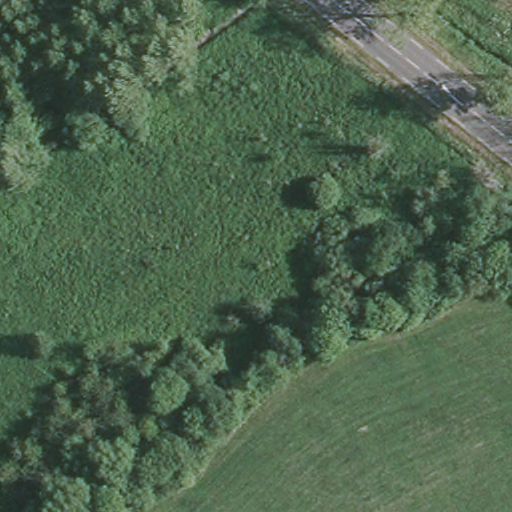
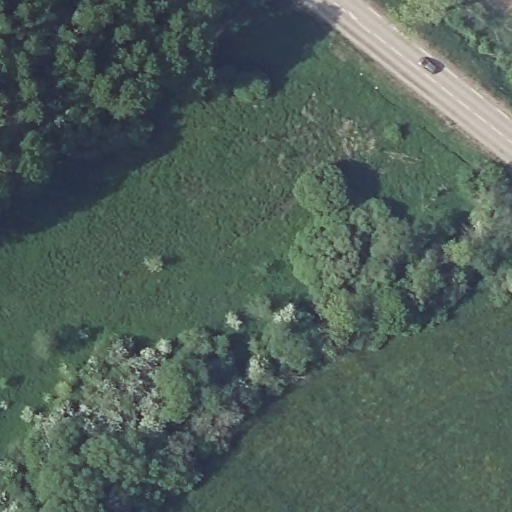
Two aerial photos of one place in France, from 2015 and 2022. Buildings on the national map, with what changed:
unchanged [(247,0),(256,0),(253,5),(247,0)]
unchanged [(334,51),(323,64),(310,53),(320,40),(334,51)]

